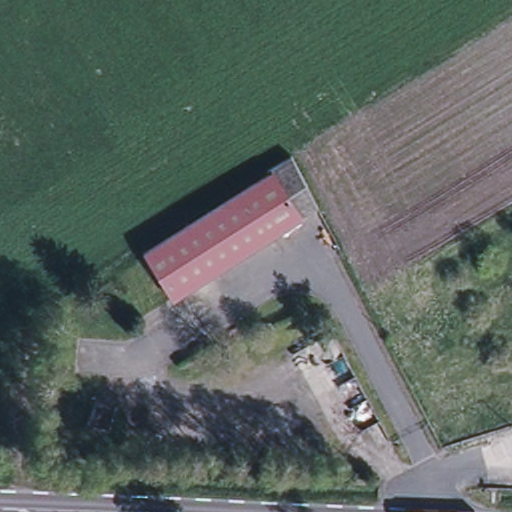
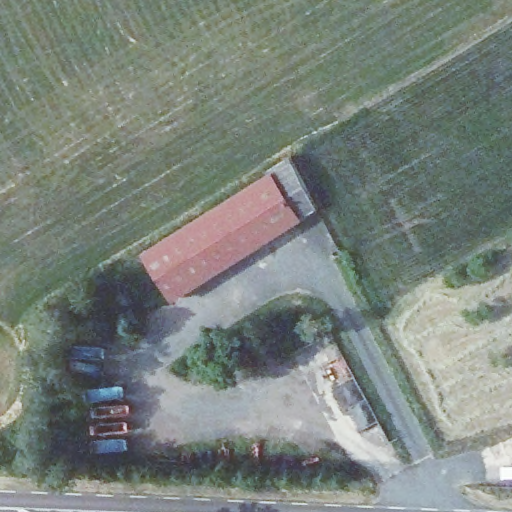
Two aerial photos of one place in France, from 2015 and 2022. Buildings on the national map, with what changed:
unchanged [(292,162),(318,211),(302,222),(272,174),(292,162)]
unchanged [(302,222),(298,224),(239,261),(172,303),(146,254),(272,174),(302,222)]

